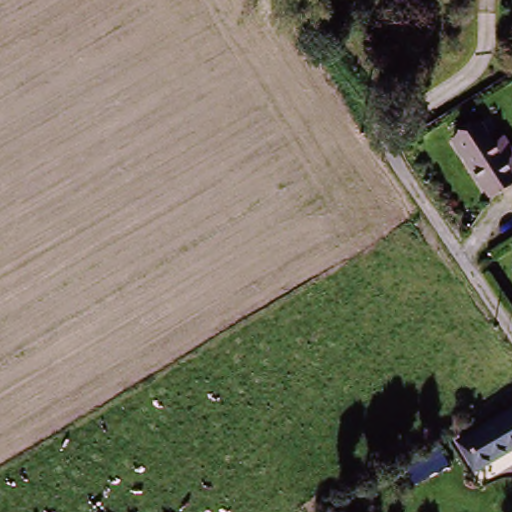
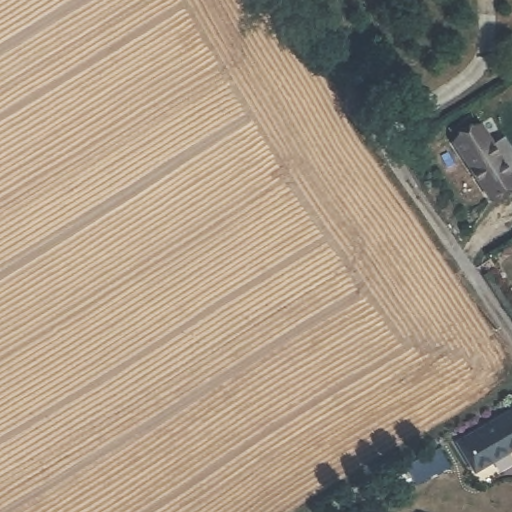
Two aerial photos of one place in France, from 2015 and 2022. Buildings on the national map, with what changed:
unchanged [(447,140),(474,124),(485,144),(497,136),(512,166),(512,180),(507,183),(482,197),(447,140)]
unchanged [(512,402),(512,439),(477,463),(460,438),(512,402)]
unchanged [(463,482),(471,475),(480,490),(471,495),(463,482)]

